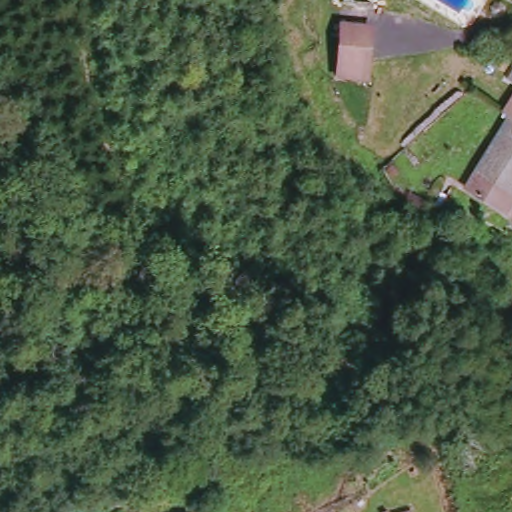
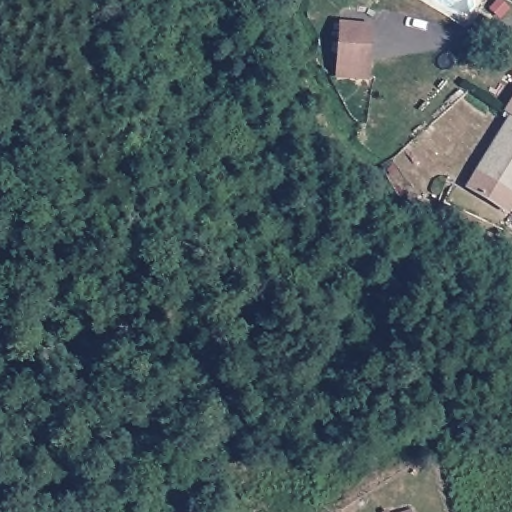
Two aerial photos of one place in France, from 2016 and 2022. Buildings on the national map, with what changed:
unchanged [(336,79),(336,27),(369,26),(369,77),(336,79)]
unchanged [(505,81),(512,69),(512,86),(505,81)]
unchanged [(460,191),(506,119),(502,115),(512,99),(512,209),(506,220),(460,191)]

